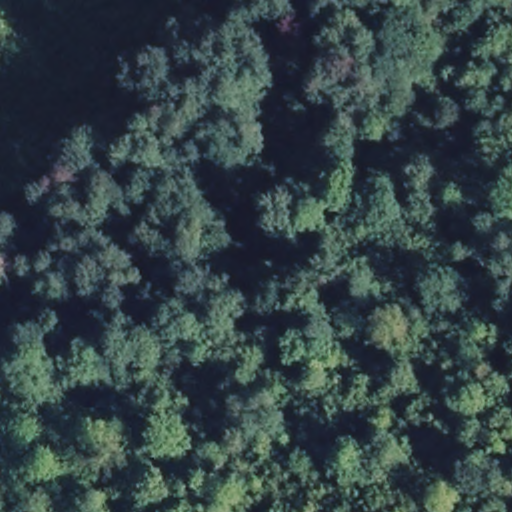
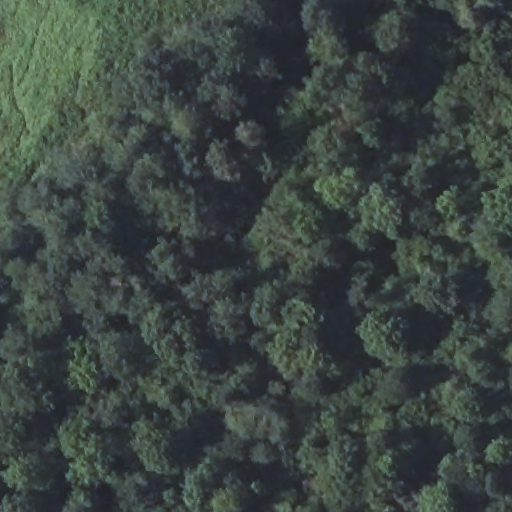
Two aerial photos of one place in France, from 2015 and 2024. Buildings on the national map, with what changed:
[]

